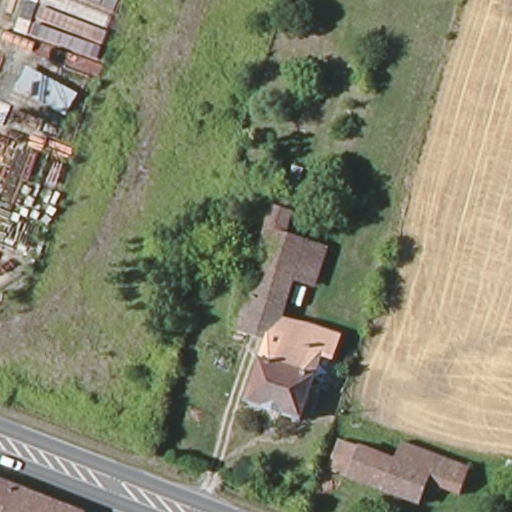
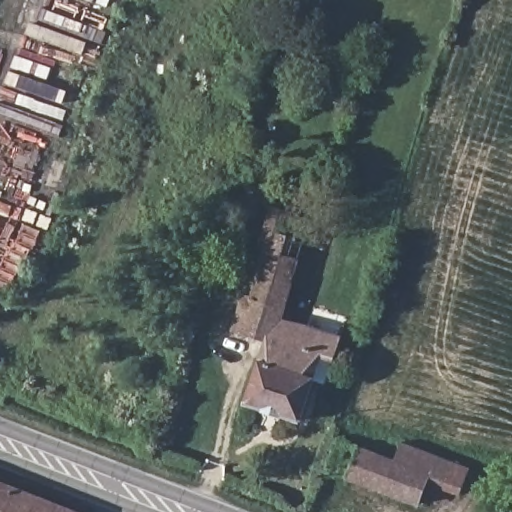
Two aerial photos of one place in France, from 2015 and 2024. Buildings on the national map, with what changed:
unchanged [(256,285),(268,249),(261,246),(276,195),(296,200),(285,237),(326,251),(315,286),(293,279),(282,311),(243,297),(248,283),(256,285)]
unchanged [(243,297),(282,311),(280,322),(305,326),(298,344),(267,334),(265,342),(233,331),(243,297)]
unchanged [(267,334),(298,344),(305,326),(339,336),(332,361),(320,356),(299,420),(246,403),(265,342),(267,334)]
unchanged [(329,474),(338,446),(388,464),(391,458),(397,459),(401,448),(435,460),(468,472),(460,491),(428,479),(418,508),(329,474)]
unchanged [(0,512),(0,484),(72,512),(0,512)]

